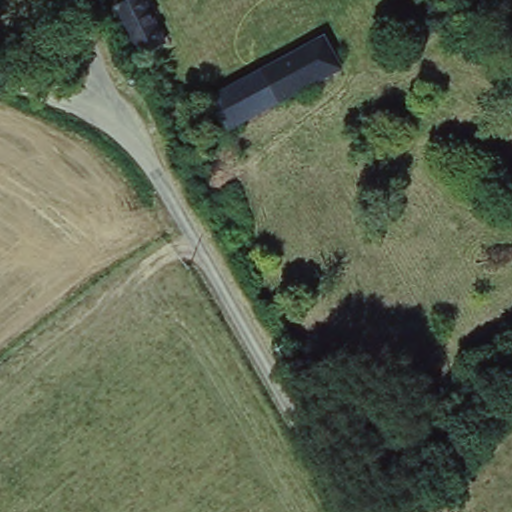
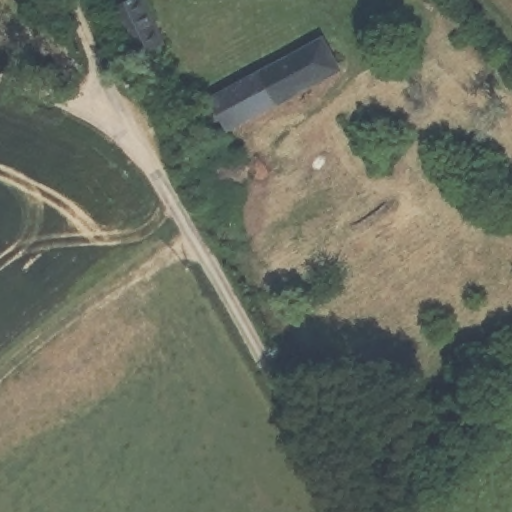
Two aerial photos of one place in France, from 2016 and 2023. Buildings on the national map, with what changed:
unchanged [(163,44),(134,58),(112,14),(142,0),(163,44)]
unchanged [(320,34),(332,59),(297,79),(300,85),(273,100),(256,69),(320,34)]
unchanged [(273,100),(222,127),(207,97),(256,69),(273,100)]

